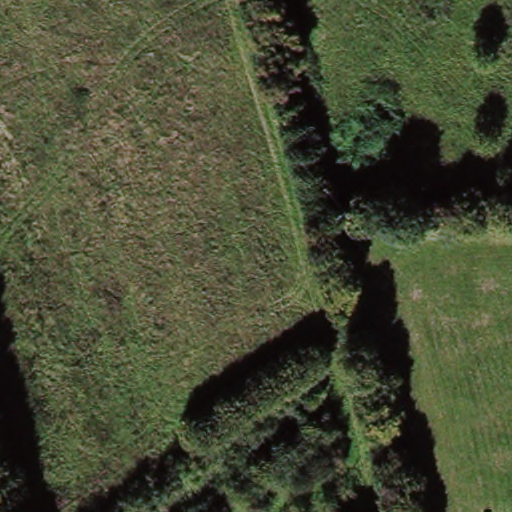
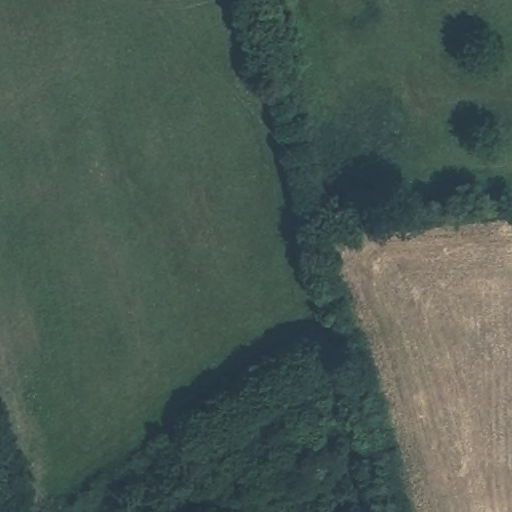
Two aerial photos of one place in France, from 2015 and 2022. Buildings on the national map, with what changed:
[]

